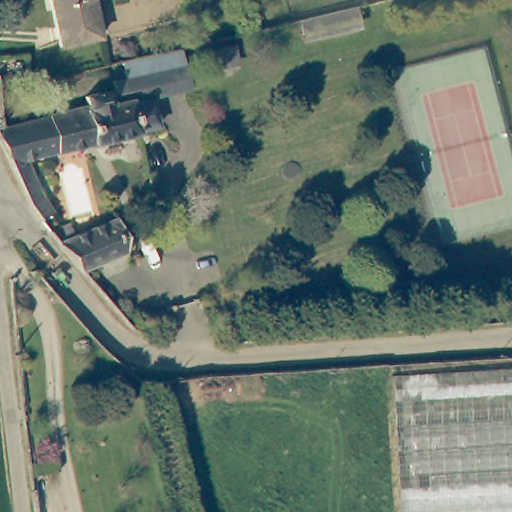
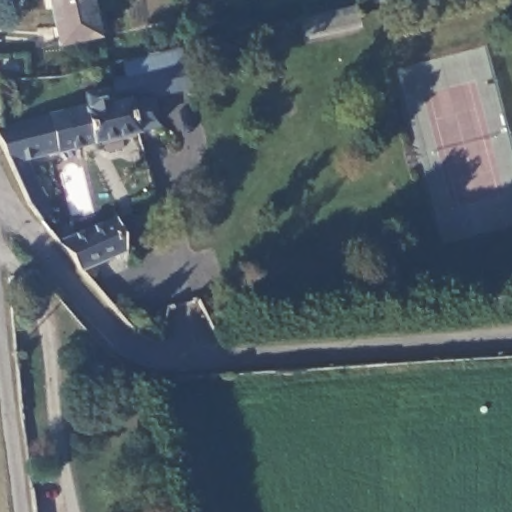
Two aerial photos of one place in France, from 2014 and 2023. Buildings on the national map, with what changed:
unchanged [(51,0),(91,0),(99,38),(61,46),(51,0)]
unchanged [(360,6),(364,25),(309,38),(293,41),(289,23),(304,19),(360,6)]
unchanged [(6,158),(0,146),(0,126),(49,116),(49,113),(88,105),(85,94),(115,88),(114,78),(129,75),(126,61),(184,46),(194,86),(154,94),(161,127),(139,131),(139,136),(57,151),(57,150),(26,156),(38,187),(53,211),(40,220),(25,200),(6,158)]
unchanged [(55,237),(74,229),(80,241),(121,223),(130,257),(87,275),(55,237)]
demolished [(512,364),(512,512),(399,512),(389,370),(512,364)]

